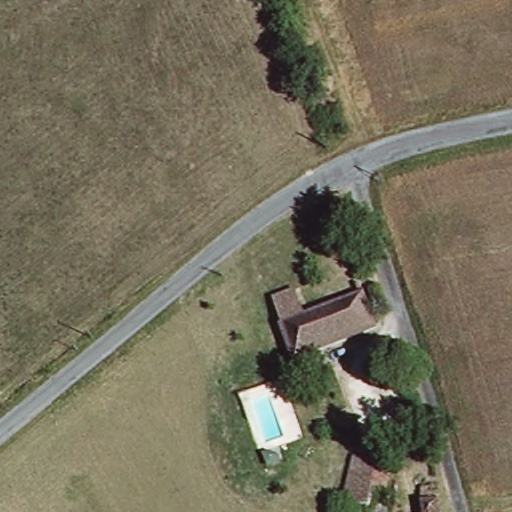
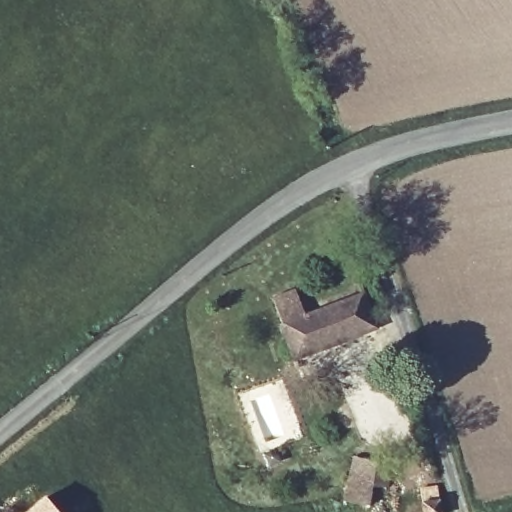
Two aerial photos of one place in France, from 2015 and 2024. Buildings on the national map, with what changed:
unchanged [(371,294),(381,329),(318,348),(297,355),(279,291),(303,284),(310,312),(371,294)]
unchanged [(341,511),(356,451),(388,458),(375,512),(347,512),(341,511)]
unchanged [(433,511),(415,508),(417,479),(435,482),(433,511)]
new [(59,512),(23,512),(44,495),(59,512)]

